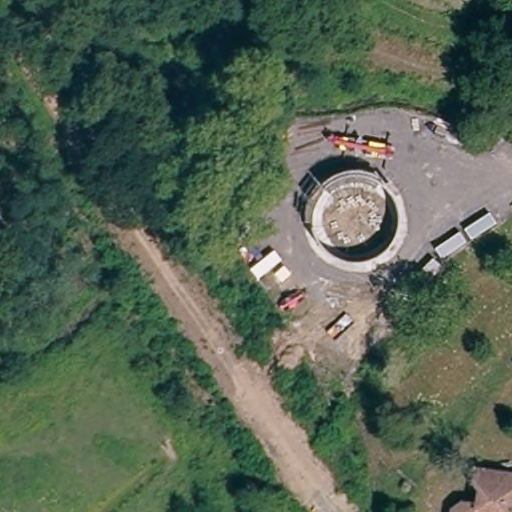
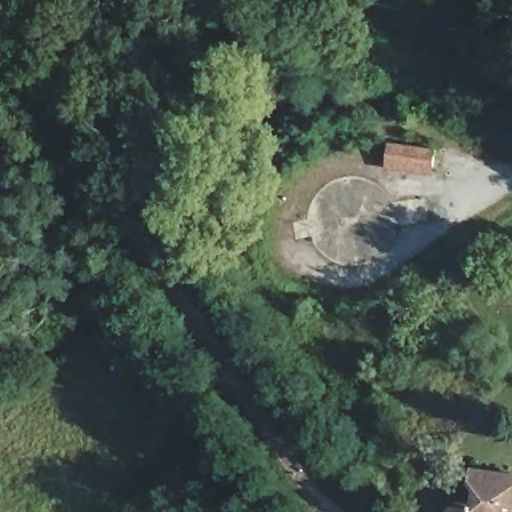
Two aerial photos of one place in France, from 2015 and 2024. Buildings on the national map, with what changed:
new [(392,144),(440,150),(436,179),(388,170),(392,144)]
unchanged [(452,504),(458,505),(462,485),(465,475),(512,484),(512,512),(442,512),(442,510),(452,504)]

